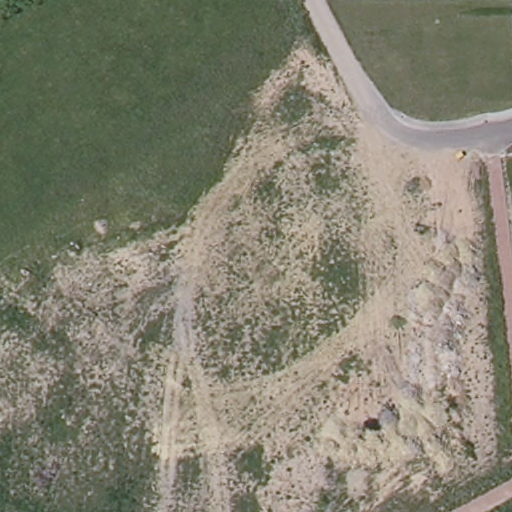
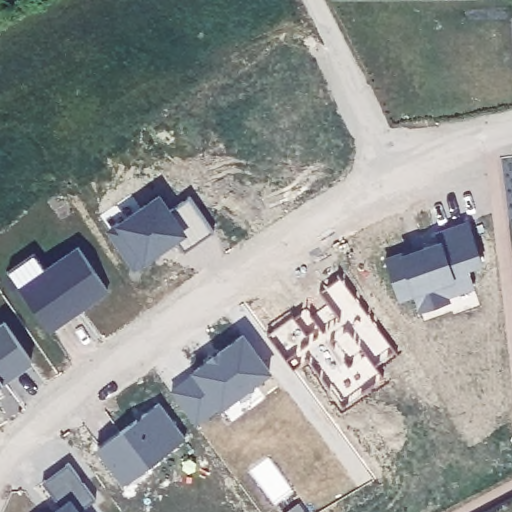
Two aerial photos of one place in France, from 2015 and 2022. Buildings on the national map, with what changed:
new [(159,197),(169,214),(191,200),(213,234),(183,254),(178,244),(133,275),(106,234),(159,197)]
new [(399,252),(401,257),(425,250),(423,236),(471,224),(486,272),(469,276),(476,293),(416,312),(413,300),(399,304),(384,257),(399,252)]
new [(78,249),(108,292),(48,335),(19,290),(78,249)]
new [(306,309),(321,333),(340,321),(323,295),(341,279),(398,359),(376,371),(384,379),(341,410),(306,366),(296,373),(269,337),(306,309)]
new [(33,367),(0,390),(0,329),(5,326),(33,367)]
new [(244,337),(273,379),(196,429),(168,394),(244,337)]
new [(159,406),(186,441),(121,492),(98,452),(159,406)]
new [(69,467),(96,502),(84,512),(58,512),(63,508),(44,484),(69,467)]

